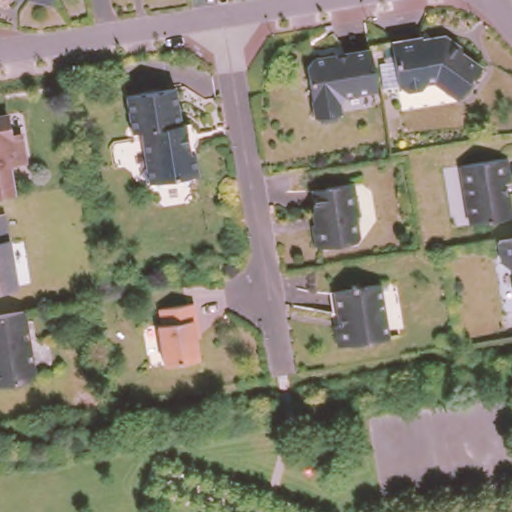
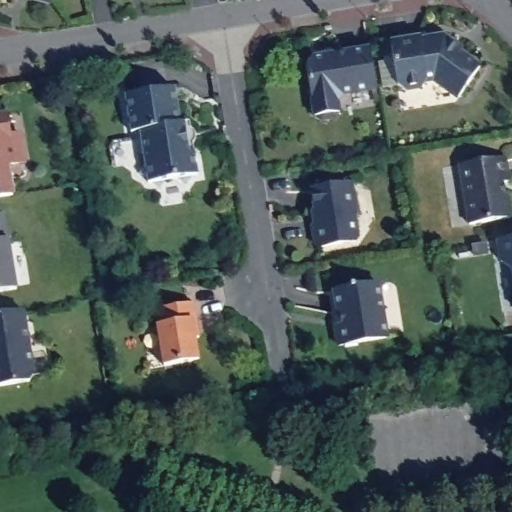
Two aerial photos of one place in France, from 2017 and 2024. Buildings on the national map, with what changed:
unchanged [(36,0),(51,0),(50,4),(36,0)]
unchanged [(420,34),(420,36),(434,34),(438,34),(442,34),(445,34),(446,36),(458,44),(459,50),(479,64),(457,94),(431,76),(426,76),(426,81),(397,86),(390,39),(420,34)]
unchanged [(369,45),(375,84),(340,90),(335,96),(338,108),(333,115),(319,117),(312,112),(304,62),(310,54),(369,45)]
unchanged [(184,179),(176,174),(165,176),(158,184),(150,178),(145,179),(145,175),(137,170),(143,163),(137,128),(128,129),(122,91),(172,83),(178,119),(181,119),(187,118),(192,148),(194,160),(196,171),(189,172),(184,179)]
unchanged [(0,110),(6,109),(10,130),(20,128),(25,157),(7,160),(12,190),(0,191),(0,110)]
unchanged [(508,182),(502,183),(505,194),(506,194),(510,217),(468,224),(458,164),(503,156),(508,182)]
unchanged [(310,194),(350,188),(356,217),(353,222),(356,242),(353,246),(317,252),(314,249),(311,233),(313,230),(311,217),(313,214),(310,194)]
unchanged [(0,286),(0,228),(10,284),(0,286)]
unchanged [(506,270),(495,262),(491,240),(512,236),(512,303),(506,270)]
unchanged [(350,281),(358,280),(359,283),(377,280),(386,332),(337,341),(334,323),(341,321),(339,310),(336,309),(333,287),(350,284),(350,281)]
unchanged [(195,320),(198,338),(194,338),(197,360),(163,366),(156,326),(160,325),(157,308),(192,303),(195,320)]
unchanged [(32,371),(27,377),(0,381),(0,310),(22,306),(32,371)]

